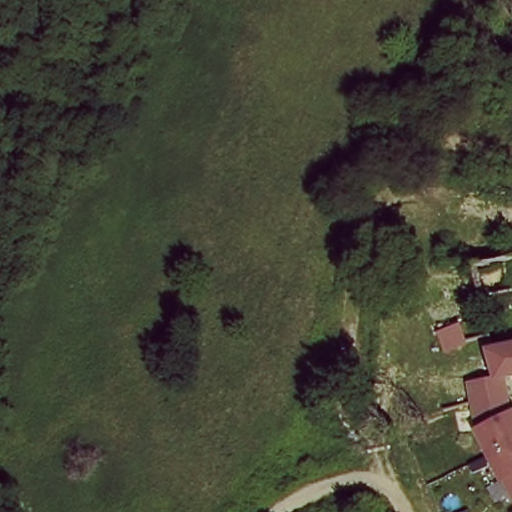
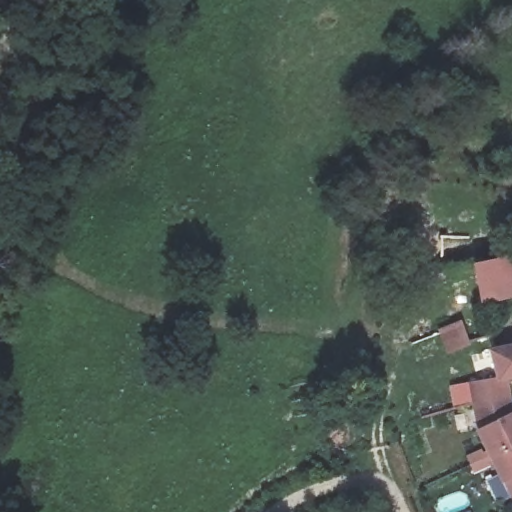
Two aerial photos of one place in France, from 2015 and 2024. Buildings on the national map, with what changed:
new [(512,298),(483,307),(471,265),(511,253),(512,257),(512,298)]
unchanged [(449,352),(436,320),(455,313),(469,345),(449,352)]
unchanged [(502,382),(495,351),(512,347),(512,380),(510,381),(502,382)]
unchanged [(502,382),(510,381),(512,393),(512,500),(475,427),(482,425),(472,381),(498,373),(500,383),(502,382)]

